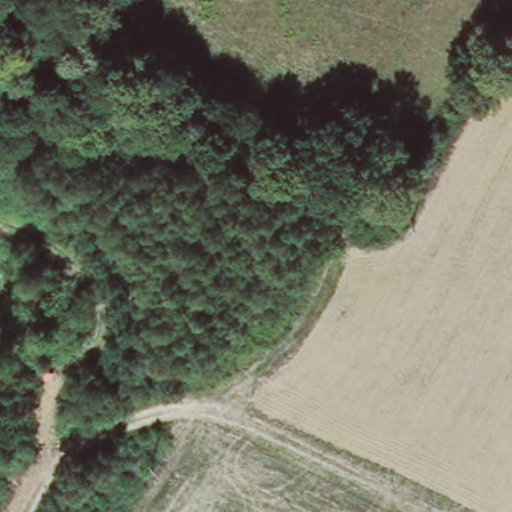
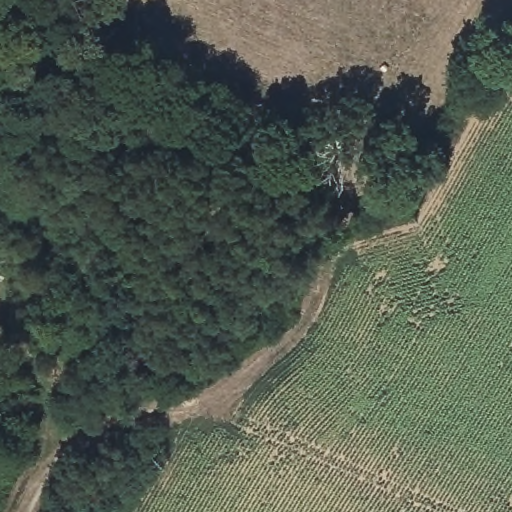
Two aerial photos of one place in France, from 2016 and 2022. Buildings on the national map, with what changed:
[]

